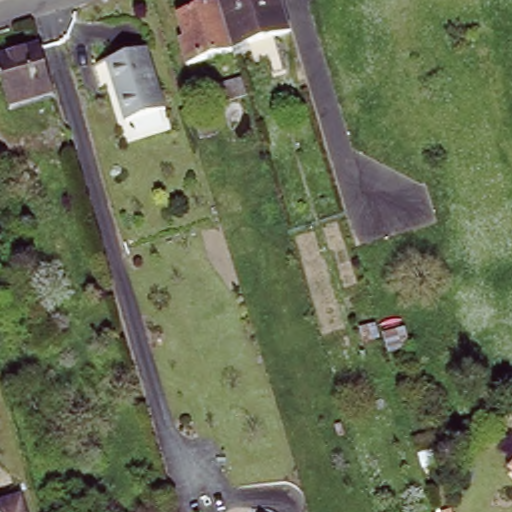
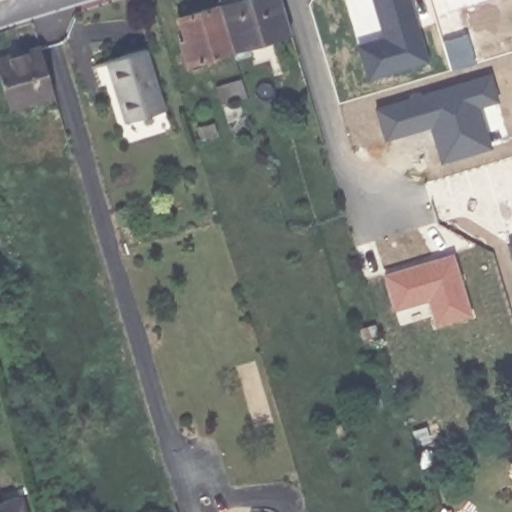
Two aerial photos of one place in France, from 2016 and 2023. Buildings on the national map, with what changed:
unchanged [(292,35),(234,53),(221,13),(245,6),(243,2),(250,0),(282,0),(292,35)]
new [(418,28),(428,60),(369,78),(359,45),(385,37),(374,0),(410,0),(418,28)]
unchanged [(234,53),(189,67),(183,50),(188,48),(180,20),(220,8),(220,10),(221,13),(234,53)]
unchanged [(146,40),(164,99),(144,105),(126,47),(146,40)]
unchanged [(0,68),(0,53),(40,41),(53,88),(10,100),(0,68)]
unchanged [(144,105),(125,110),(107,52),(126,47),(144,105)]
new [(433,131),(432,126),(386,140),(377,108),(490,74),(498,101),(479,107),(492,147),(460,157),(442,162),(433,131)]
new [(453,255),(472,315),(437,325),(429,300),(395,310),(385,275),(453,255)]
unchanged [(31,512),(0,512),(0,509),(27,501),(31,512)]

